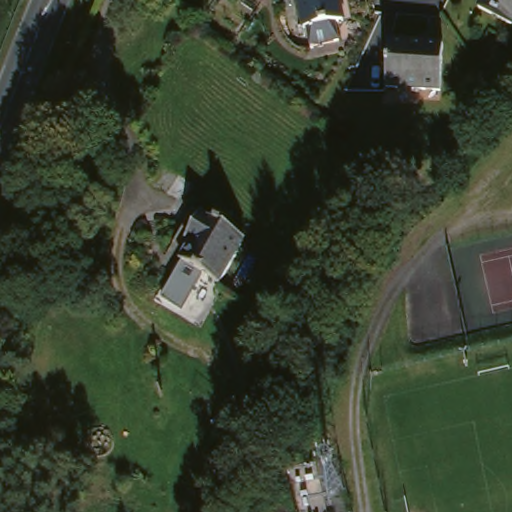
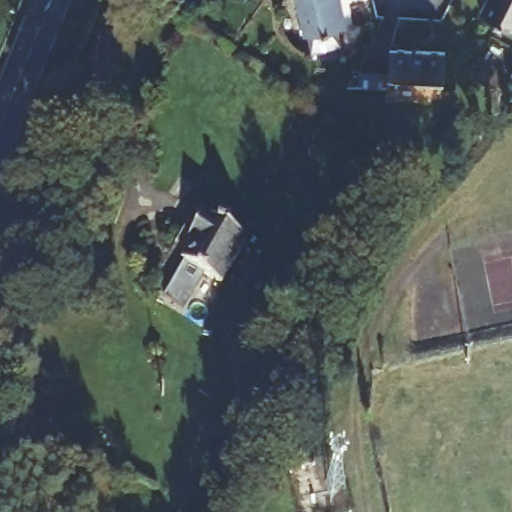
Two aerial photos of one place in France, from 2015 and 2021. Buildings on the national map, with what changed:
unchanged [(348,13),(339,16),(344,32),(316,40),(311,23),(309,24),(303,0),(344,0),(348,13)]
unchanged [(512,33),(478,14),(485,0),(512,0),(512,33)]
unchanged [(443,47),(441,93),(386,90),(389,45),(443,47)]
unchanged [(248,244),(223,292),(184,271),(195,252),(187,247),(201,219),(248,244)]
unchanged [(331,376),(311,413),(273,391),(296,351),(333,372),(331,376)]

